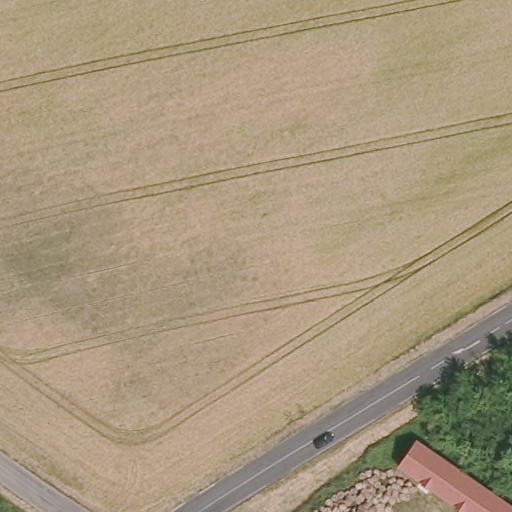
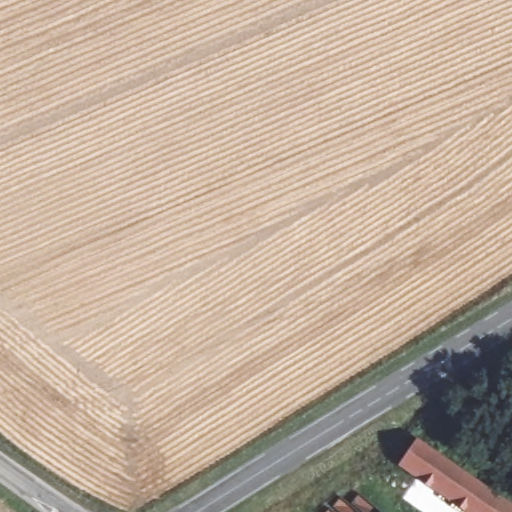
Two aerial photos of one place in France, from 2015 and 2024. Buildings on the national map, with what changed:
unchanged [(477,512),(402,464),(418,437),(510,492),(512,493),(512,512),(477,512)]

